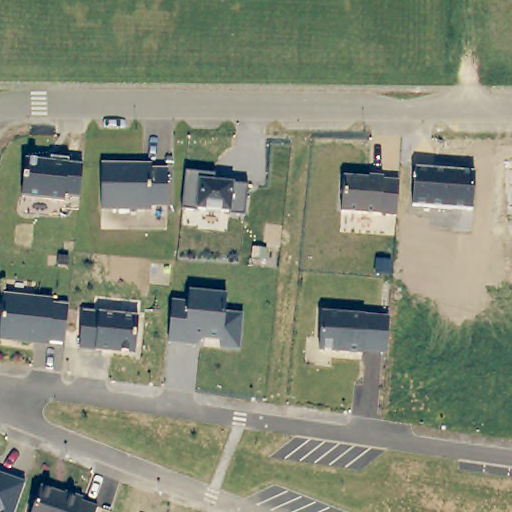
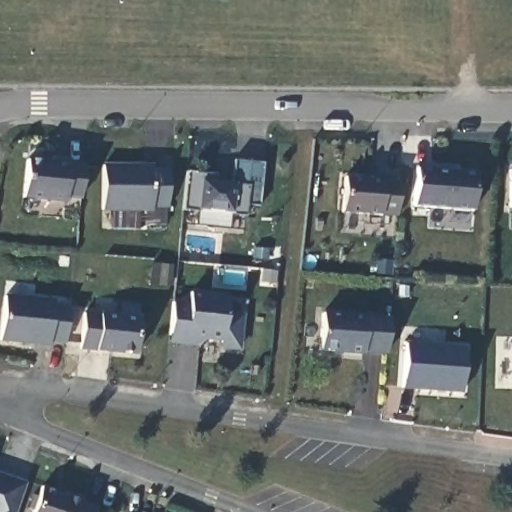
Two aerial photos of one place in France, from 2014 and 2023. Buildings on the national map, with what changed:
unchanged [(67,198),(66,202),(23,196),(27,159),(82,165),(80,200),(67,198)]
unchanged [(152,207),(152,211),(102,211),(103,166),(152,167),(152,171),(169,171),(169,207),(152,207)]
unchanged [(412,205),(415,168),(477,173),(473,211),(412,205)]
unchanged [(510,169),(512,169),(512,208),(509,208),(510,169)]
unchanged [(184,211),(187,172),(217,174),(216,183),(249,185),(246,215),(184,211)]
unchanged [(401,190),(399,216),(343,212),(346,176),(372,178),(372,176),(386,177),(386,179),(402,180),(401,190)]
unchanged [(171,339),(174,306),(190,308),(191,296),(228,300),(226,318),(242,320),(240,352),(222,351),(222,344),(207,342),(199,348),(192,348),(170,346),(171,339)]
unchanged [(67,343),(51,342),(51,346),(2,341),(6,298),(55,303),(55,307),(70,308),(67,343)]
unchanged [(365,352),(365,354),(322,351),(325,314),(392,319),(389,354),(365,352)]
unchanged [(85,317),(141,322),(137,358),(81,352),(85,317)]
new [(465,392),(403,388),(407,345),(467,349),(465,392)]
unchanged [(26,487),(17,512),(0,512),(0,478),(26,487)]
unchanged [(42,490),(66,499),(66,496),(83,502),(82,505),(98,511),(97,512),(34,512),(42,490)]

